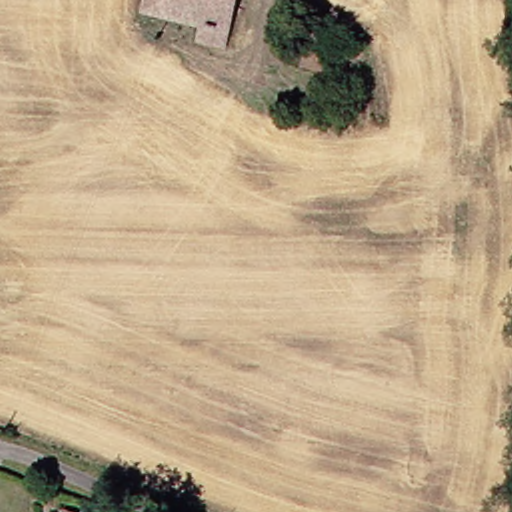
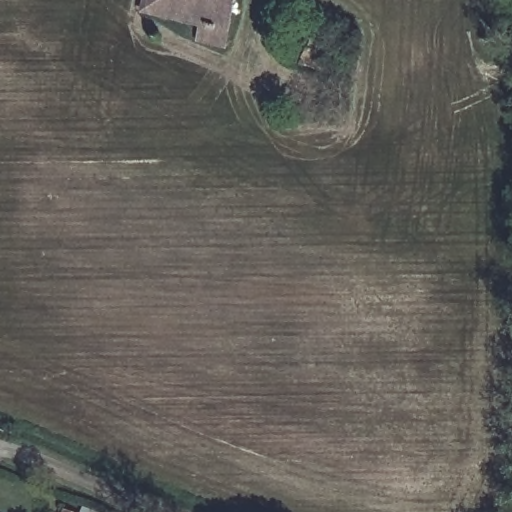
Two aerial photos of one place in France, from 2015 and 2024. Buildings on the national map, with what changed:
unchanged [(187,44),(191,29),(131,11),(134,0),(225,0),(223,9),(212,51),(187,44)]
unchanged [(295,73),(298,62),(308,23),(330,28),(319,68),(314,66),(311,77),(295,73)]
unchanged [(25,496),(31,483),(62,496),(57,509),(25,496)]

